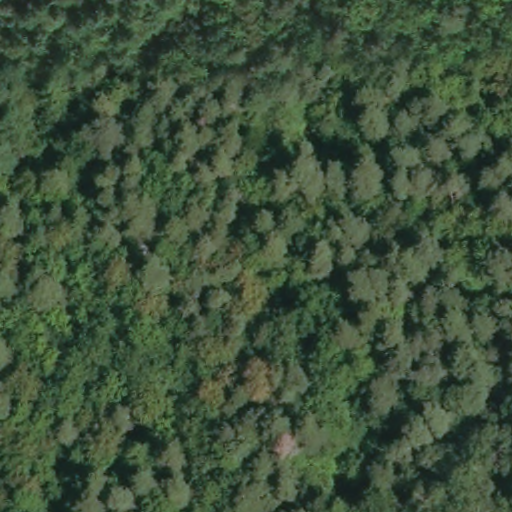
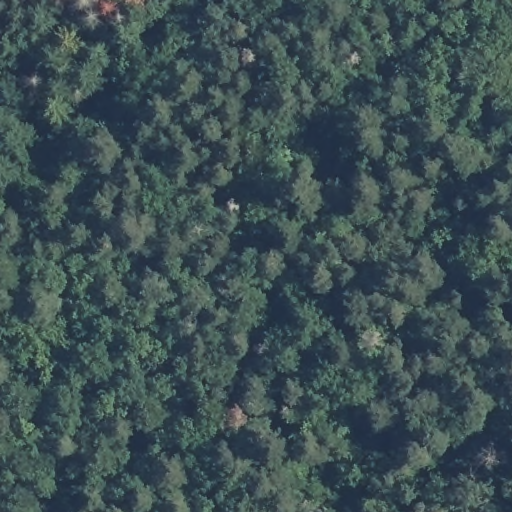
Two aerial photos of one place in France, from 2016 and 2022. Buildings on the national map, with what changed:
[]

